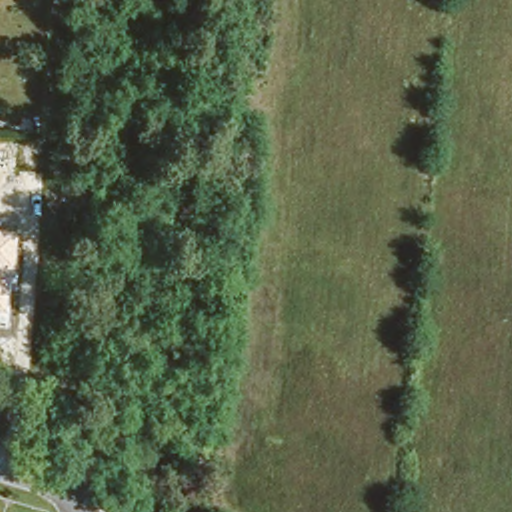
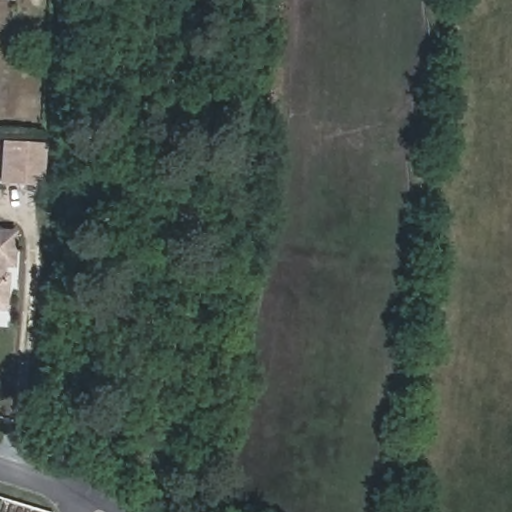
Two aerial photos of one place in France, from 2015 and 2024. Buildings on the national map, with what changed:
new [(2,141),(45,143),(43,186),(0,182),(2,141)]
unchanged [(14,268),(8,268),(7,310),(0,310),(0,229),(16,230),(14,268)]

